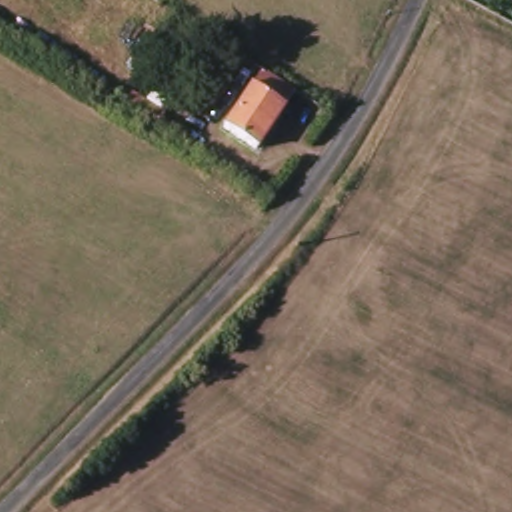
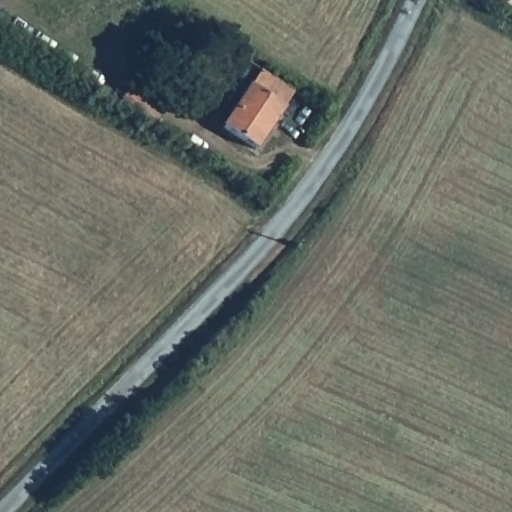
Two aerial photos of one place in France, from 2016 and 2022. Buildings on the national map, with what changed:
unchanged [(261,148),(225,124),(261,69),(298,94),(261,148)]

